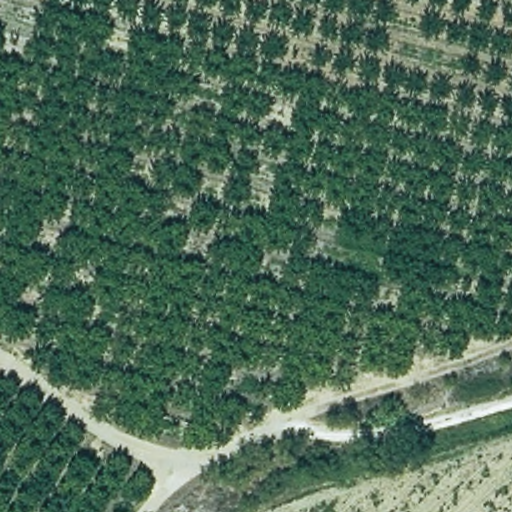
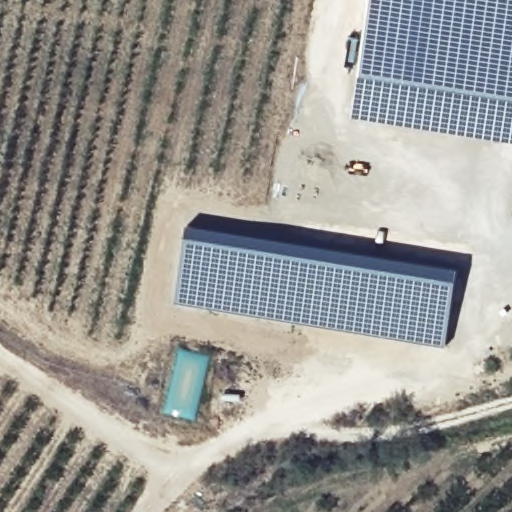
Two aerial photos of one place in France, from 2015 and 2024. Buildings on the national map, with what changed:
new [(512,0),(512,102),(357,78),(370,0),(512,0)]
new [(187,225),(237,232),(460,268),(445,348),(335,330),(174,305),(187,225)]

